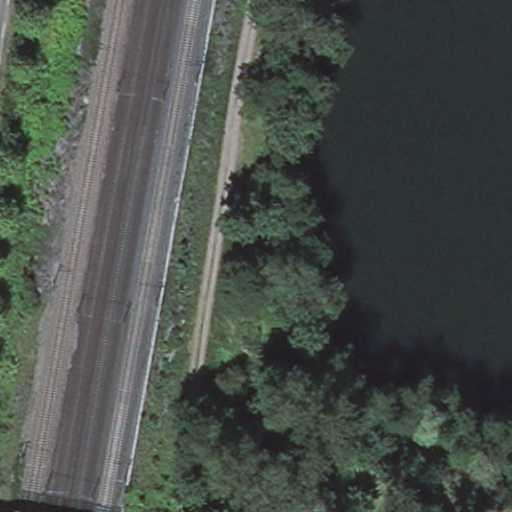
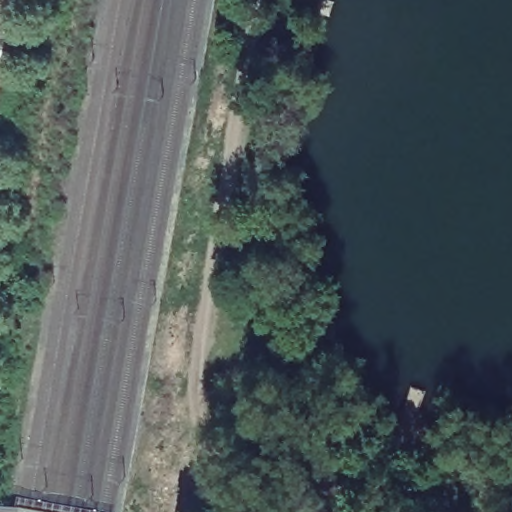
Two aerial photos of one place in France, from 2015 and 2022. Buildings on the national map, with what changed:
[]

